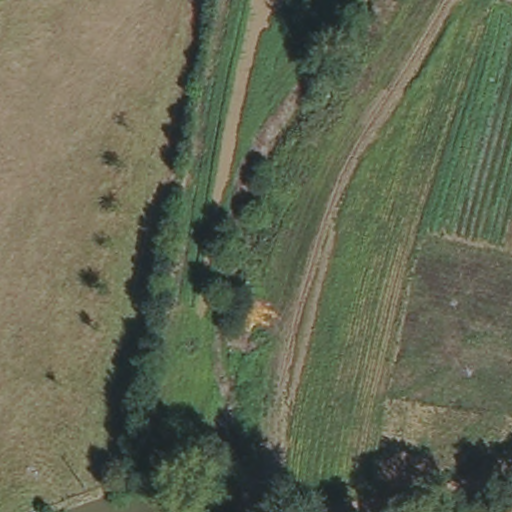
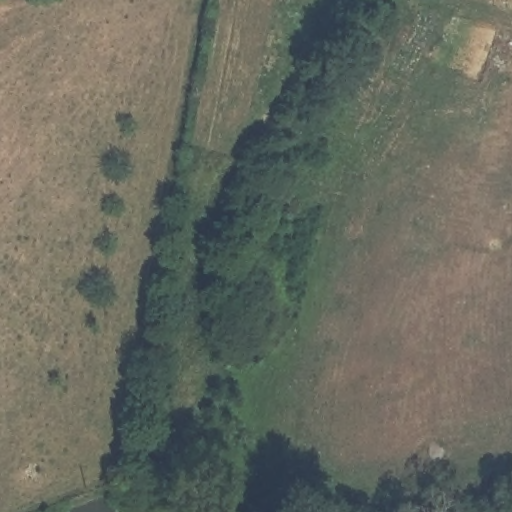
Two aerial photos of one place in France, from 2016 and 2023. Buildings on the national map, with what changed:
unchanged [(319,33),(310,19),(321,13),(329,27),(319,33)]

